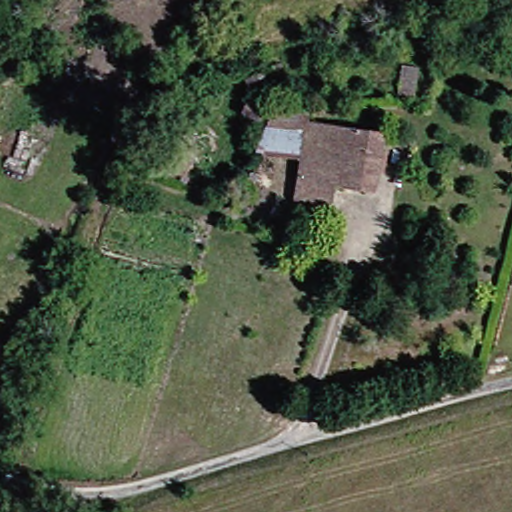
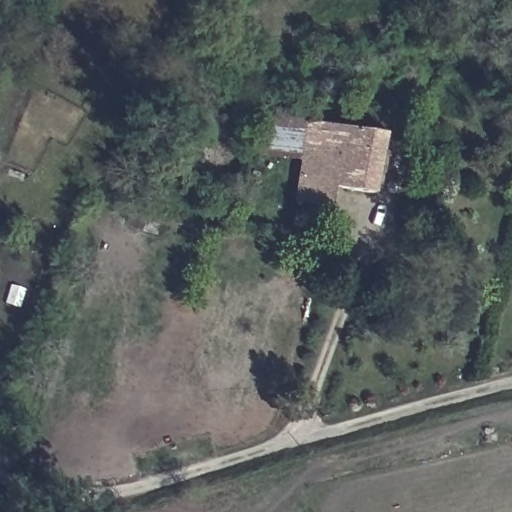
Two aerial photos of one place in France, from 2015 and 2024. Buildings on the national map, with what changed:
unchanged [(423,73),(421,103),(410,101),(413,73),(423,73)]
unchanged [(253,85),(268,81),(271,91),(255,96),(253,85)]
unchanged [(270,106),(261,119),(247,109),(255,97),(270,106)]
unchanged [(262,152),(277,107),(312,111),(311,119),(305,157),(262,152)]
unchanged [(302,222),(305,200),(299,199),(305,157),(311,119),(390,130),(378,193),(340,187),(336,206),(332,229),(302,222)]

